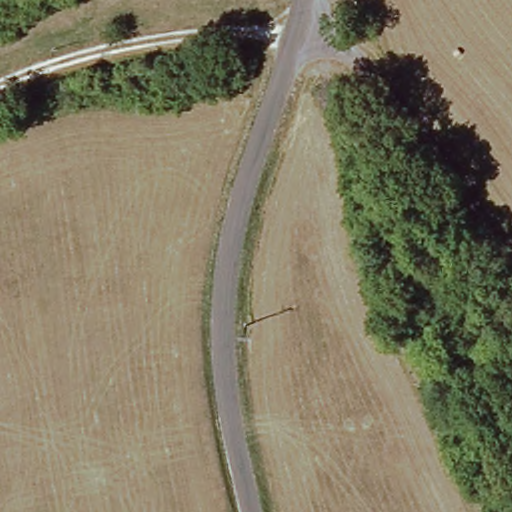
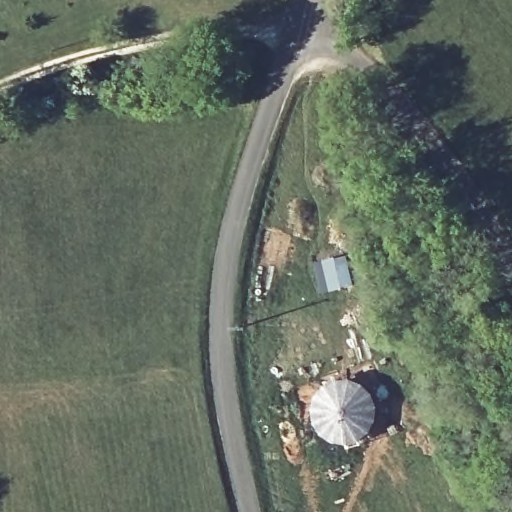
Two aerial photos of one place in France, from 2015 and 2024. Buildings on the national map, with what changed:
new [(347,254),(355,285),(320,295),(312,262),(347,254)]
new [(315,402),(320,393),(327,386),(336,381),(346,380),(356,381),(366,386),(372,393),(377,402),(378,412),(377,422),(372,431),(366,439),(356,443),(346,445),(336,443),(327,439),(320,431),(315,422),(313,412),(315,402)]

